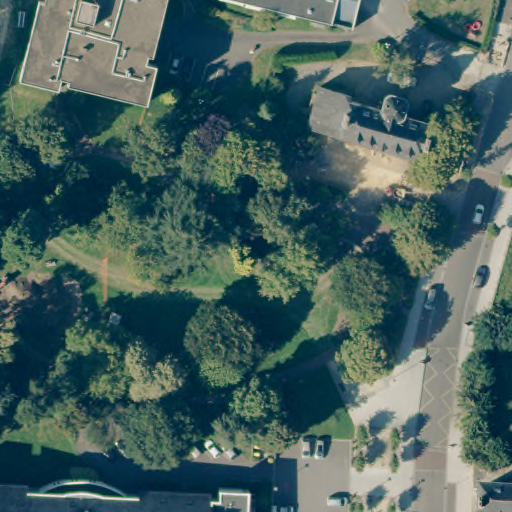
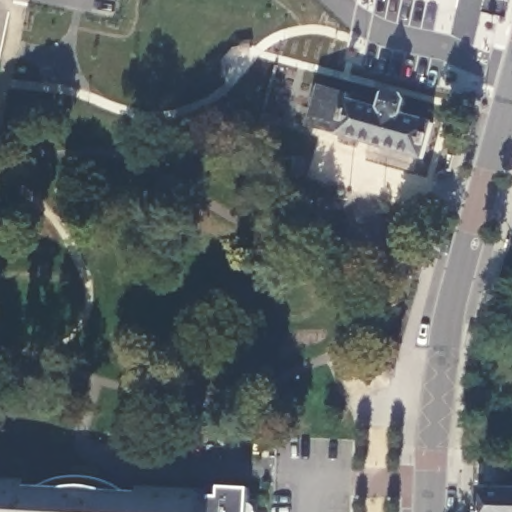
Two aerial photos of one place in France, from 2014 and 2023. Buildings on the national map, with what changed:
demolished [(149,55),(146,63),(156,65),(147,104),(68,84),(69,80),(62,79),(59,87),(20,78),(39,0),(43,2),(44,0),(167,0),(153,56),(149,55)]
demolished [(235,0),(360,0),(353,29),(235,0)]
unchanged [(307,123),(318,82),(350,91),(349,97),(380,106),(384,92),(389,90),(401,94),(403,99),(400,111),(431,120),(421,155),(307,123)]
unchanged [(476,490),(472,490),(472,463),(512,464),(512,512),(476,512),(476,490)]
unchanged [(39,486),(48,481),(57,478),(67,476),(77,475),(86,475),(95,475),(104,477),(113,480),(121,485),(128,490),(138,491),(135,512),(0,512),(0,484),(39,486)]
unchanged [(258,512),(135,512),(138,491),(220,495),(220,485),(248,486),(248,503),(258,504),(258,512)]

